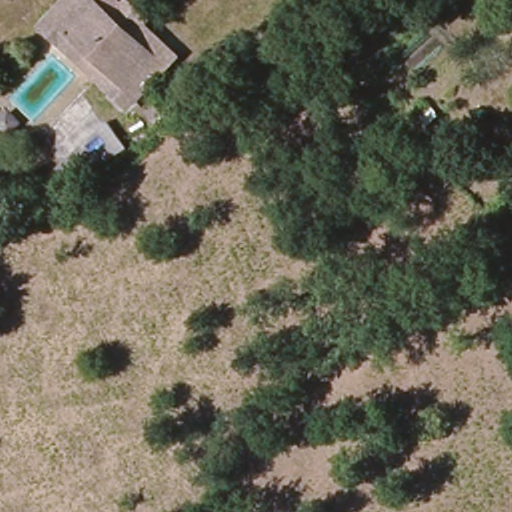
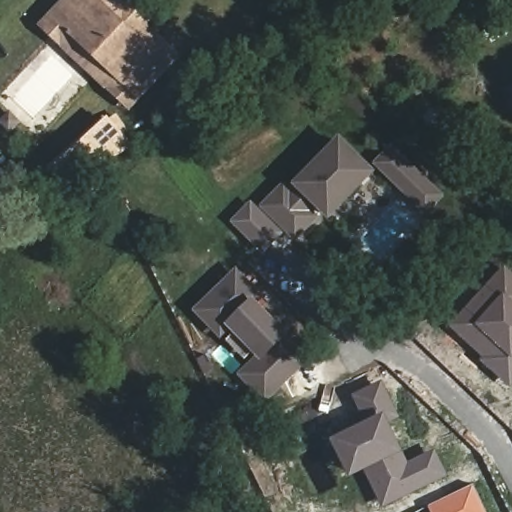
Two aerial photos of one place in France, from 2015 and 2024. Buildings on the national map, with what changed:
unchanged [(146,48),(164,30),(185,52),(129,110),(105,93),(114,82),(71,37),(66,43),(46,25),(67,0),(107,0),(103,5),(146,48)]
unchanged [(127,150),(64,190),(50,172),(108,121),(127,150)]
new [(327,220),(316,209),(314,211),(319,216),(293,241),(259,205),(284,180),(289,186),(291,184),(339,137),(374,172),(327,220)]
new [(425,215),(374,163),(392,145),(444,197),(425,215)]
new [(233,328),(220,339),(194,310),(237,269),(265,297),(233,328)]
new [(508,275),(512,279),(512,382),(499,371),(503,368),(459,328),(508,275)]
new [(266,403),(238,372),(259,354),(233,328),(265,297),(309,360),(266,403)]
new [(388,504),(355,437),(375,427),(361,399),(383,389),(397,417),(386,423),(409,471),(436,458),(445,476),(388,504)]
new [(474,487),(481,501),(487,512),(436,512),(434,507),(474,487)]

